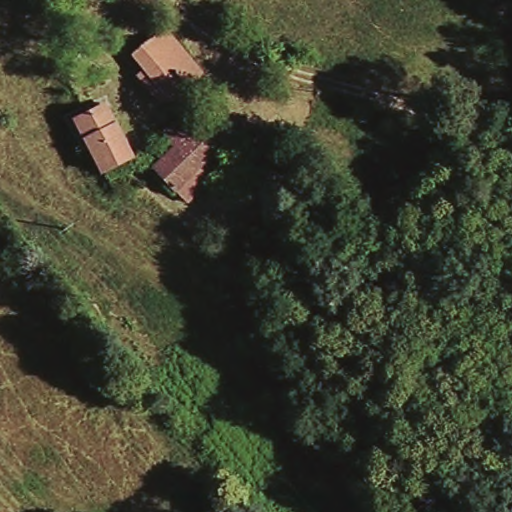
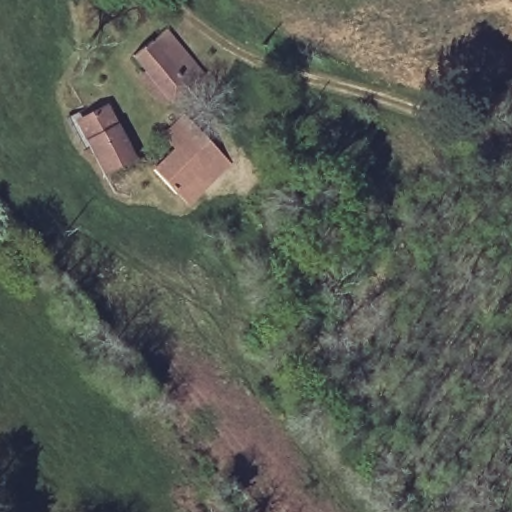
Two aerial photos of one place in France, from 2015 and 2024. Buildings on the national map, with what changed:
unchanged [(142,71),(131,53),(163,26),(201,74),(166,103),(163,102),(137,77),(142,71)]
unchanged [(207,137),(228,162),(183,201),(151,163),(170,147),(158,133),(181,113),(194,100),(206,115),(218,127),(207,137)]
unchanged [(81,131),(104,118),(120,149),(113,154),(99,162),(81,131)]

